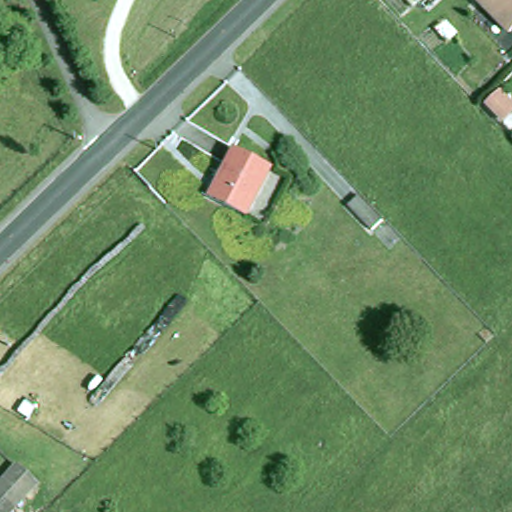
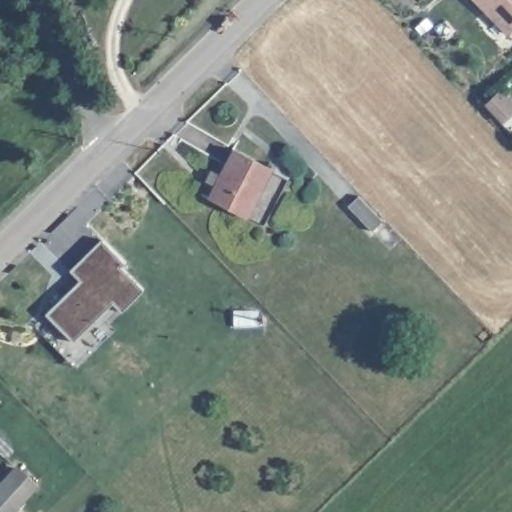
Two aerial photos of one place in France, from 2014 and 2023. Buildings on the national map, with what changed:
unchanged [(506,35),(470,0),(512,0),(512,30),(506,35)]
unchanged [(246,216),(211,199),(236,149),(270,166),(246,216)]
new [(360,194),(385,219),(374,229),(350,204),(360,194)]
new [(33,325),(46,313),(80,281),(69,269),(100,239),(124,262),(120,266),(144,288),(121,310),(108,324),(113,329),(72,366),(33,325)]
unchanged [(18,468),(36,484),(15,507),(10,512),(0,512),(0,488),(18,468)]

